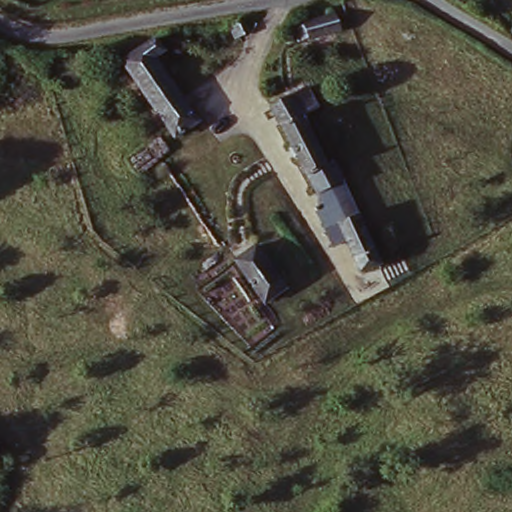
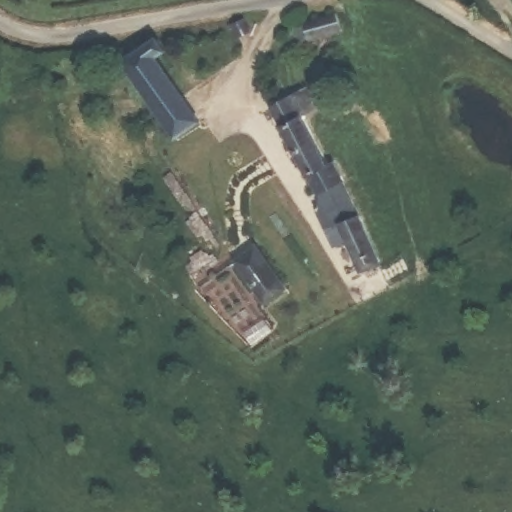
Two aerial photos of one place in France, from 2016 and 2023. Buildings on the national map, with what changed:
unchanged [(335,28),(336,30),(306,38),(306,36),(296,39),(293,25),(302,23),(301,19),(331,12),(335,28)]
unchanged [(116,61),(147,43),(157,59),(150,64),(202,139),(177,153),(169,142),(116,61)]
unchanged [(284,146),(287,145),(267,104),(303,84),(314,105),(298,114),(322,159),(330,156),(340,180),(311,193),(292,154),(289,155),(284,146)]
unchanged [(352,274),(330,222),(318,189),(340,180),(352,214),(372,265),(352,274)]
unchanged [(253,253),(284,294),(263,309),(233,268),(253,253)]

